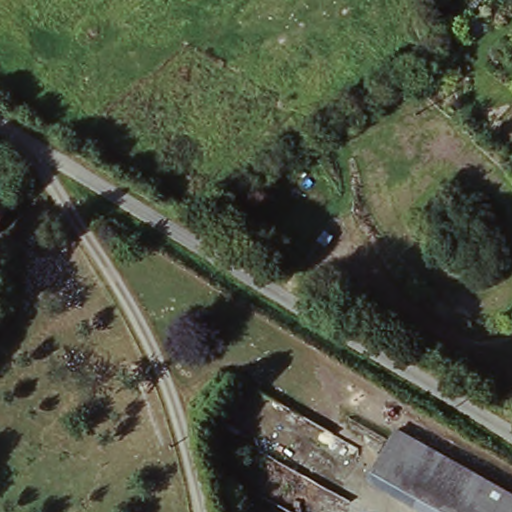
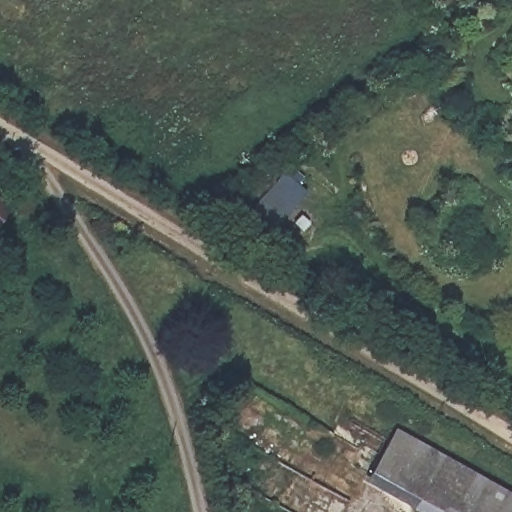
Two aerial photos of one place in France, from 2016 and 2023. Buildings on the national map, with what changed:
unchanged [(0,233),(0,203),(11,209),(0,233)]
unchanged [(363,480),(395,430),(512,496),(512,512),(422,512),(363,480)]

